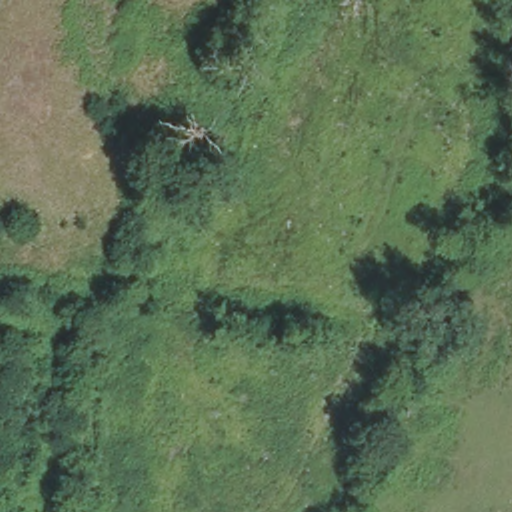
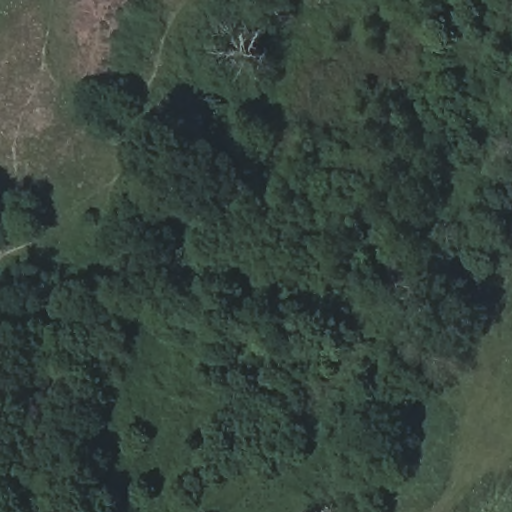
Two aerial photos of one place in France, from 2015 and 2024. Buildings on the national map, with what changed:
[]

